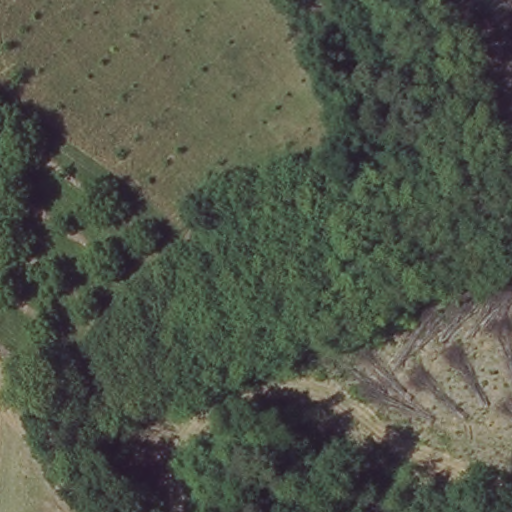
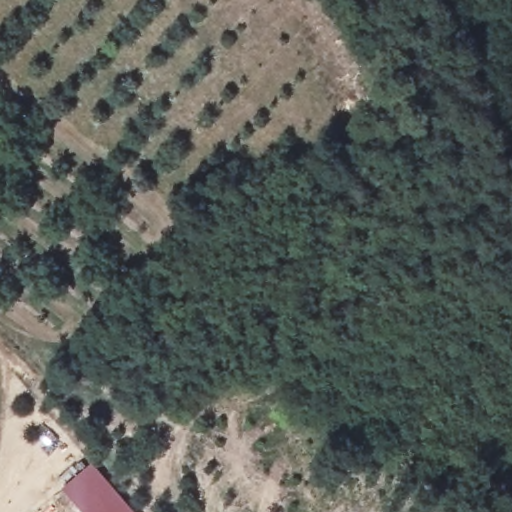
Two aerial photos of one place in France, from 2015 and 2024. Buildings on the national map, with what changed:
new [(63,486),(92,462),(133,512),(84,512),(63,486)]

